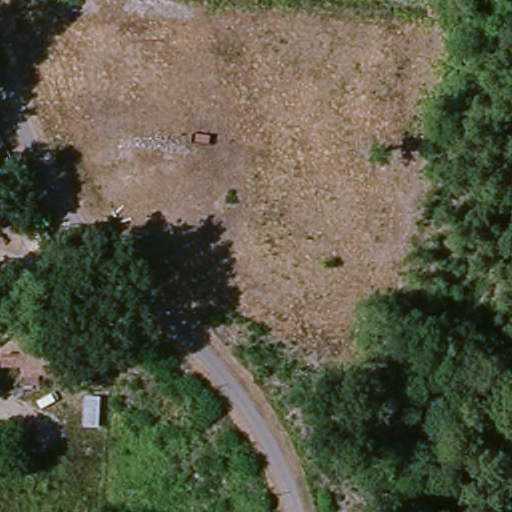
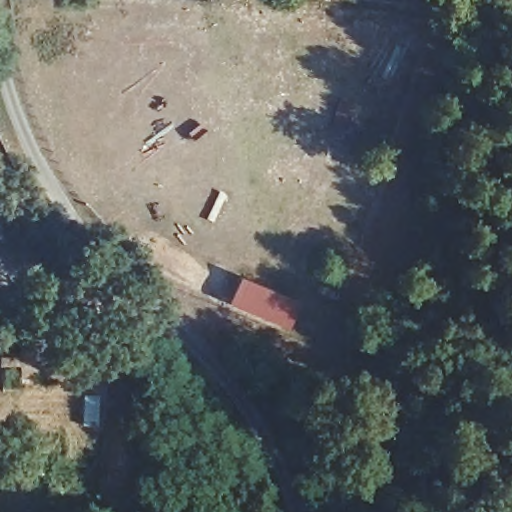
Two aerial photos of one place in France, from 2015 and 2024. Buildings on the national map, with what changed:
new [(230,303),(242,275),(300,300),(288,328),(230,303)]
unchanged [(44,361),(35,361),(35,369),(0,370),(0,344),(42,343),(44,361)]

